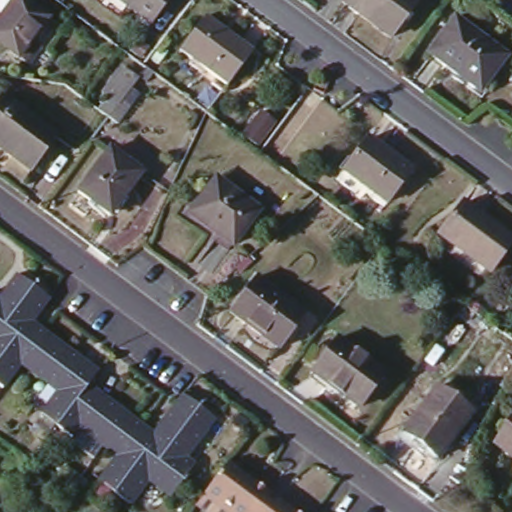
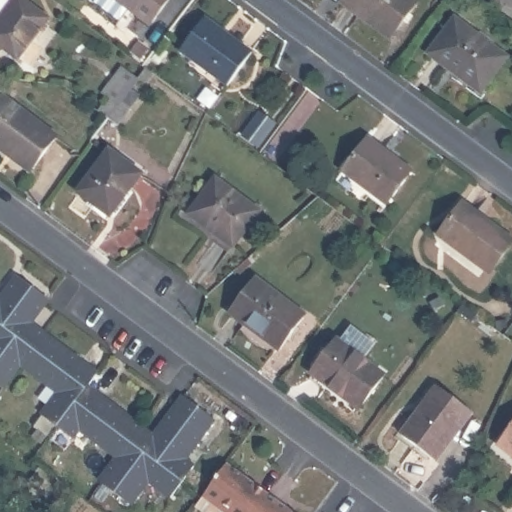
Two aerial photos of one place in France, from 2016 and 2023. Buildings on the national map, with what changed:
unchanged [(24,62),(0,46),(0,31),(4,25),(0,22),(0,7),(5,0),(21,0),(53,24),(37,45),(45,51),(33,68),(25,61),(24,62)]
unchanged [(166,0),(148,24),(117,0),(166,0)]
unchanged [(347,0),(408,0),(416,6),(390,42),(342,7),(347,0)]
unchanged [(181,55),(205,22),(251,57),(227,90),(181,55)]
unchanged [(428,58),(453,22),(506,61),(480,96),(428,58)]
unchanged [(149,64),(141,73),(134,67),(140,57),(149,64)]
unchanged [(118,86),(109,79),(117,67),(127,74),(118,86)]
unchanged [(115,91),(124,98),(110,114),(102,107),(115,91)]
unchanged [(265,101),(281,112),(265,137),(250,125),(265,101)]
unchanged [(0,106),(50,143),(25,176),(0,158),(0,106)]
unchanged [(362,144),(405,175),(380,207),(338,176),(362,144)]
unchanged [(77,197),(108,155),(140,179),(109,221),(77,197)]
unchanged [(220,241),(221,240),(193,219),(219,184),(262,217),(236,252),(220,241)]
unchanged [(467,206),(512,241),(512,252),(493,277),(443,240),(467,206)]
unchanged [(99,481),(98,480),(114,456),(89,437),(83,446),(55,426),(48,435),(34,424),(46,405),(37,398),(47,386),(20,365),(3,388),(0,386),(0,296),(15,277),(47,300),(30,324),(42,333),(96,373),(86,386),(140,426),(152,435),(181,396),(213,420),(184,459),(191,466),(169,497),(147,481),(130,503),(111,490),(99,505),(88,497),(99,481)]
unchanged [(255,285),(304,320),(278,356),(230,320),(255,285)]
unchanged [(310,378),(335,345),(382,380),(358,414),(310,378)]
unchanged [(399,435),(440,380),(446,385),(442,391),(470,410),(435,461),(399,435)]
unchanged [(498,446),(512,427),(512,457),(498,446)]
unchanged [(202,497),(226,464),(292,512),(222,512),(202,497)]
unchanged [(76,494),(71,500),(66,496),(70,490),(76,494)]

